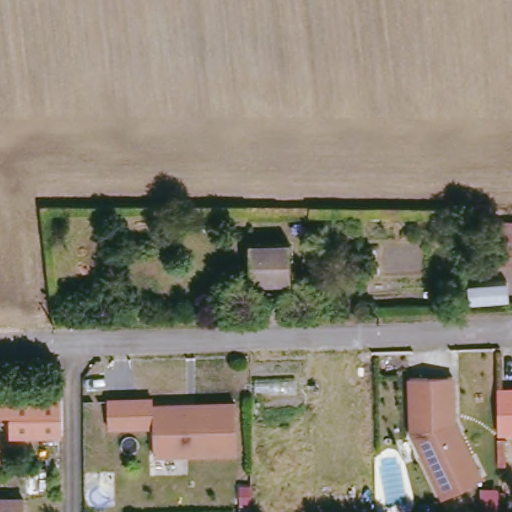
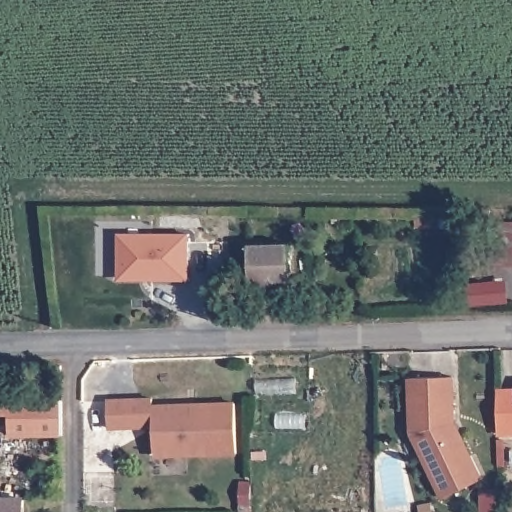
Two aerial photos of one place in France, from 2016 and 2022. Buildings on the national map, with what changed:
unchanged [(512,222),(512,268),(500,268),(501,222),(512,222)]
new [(117,282),(118,234),(188,234),(188,280),(117,282)]
unchanged [(288,241),(288,280),(271,280),(271,287),(248,287),(249,240),(288,241)]
unchanged [(454,422),(482,479),(443,498),(411,433),(409,378),(453,377),(454,422)]
unchanged [(512,388),(512,433),(500,433),(499,388),(512,388)]
unchanged [(10,436),(9,416),(0,416),(0,395),(60,393),(60,435),(10,436)]
unchanged [(153,427),(108,427),(106,395),(153,396),(153,408),(153,427)]
unchanged [(233,406),(235,457),(154,460),(153,408),(233,406)]
unchanged [(501,439),(508,439),(508,463),(501,463),(501,439)]
unchanged [(25,512),(0,512),(0,495),(25,495),(25,512)]

